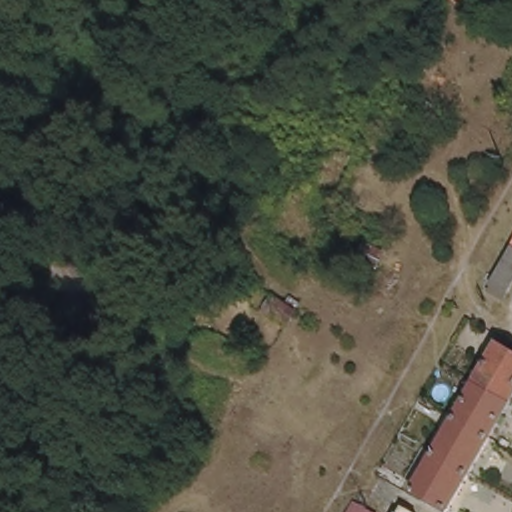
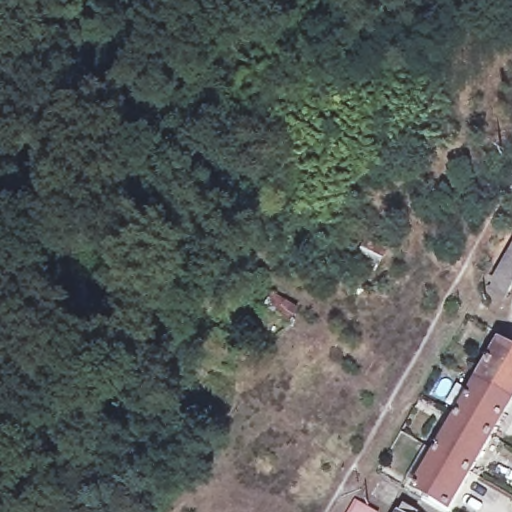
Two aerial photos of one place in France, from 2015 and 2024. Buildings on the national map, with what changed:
unchanged [(512,294),(505,307),(489,299),(512,257),(512,294)]
unchanged [(512,340),(512,401),(446,512),(441,512),(409,494),(503,335),(512,340)]
unchanged [(420,512),(398,512),(404,502),(420,512)]
unchanged [(375,512),(358,512),(362,506),(375,512)]

